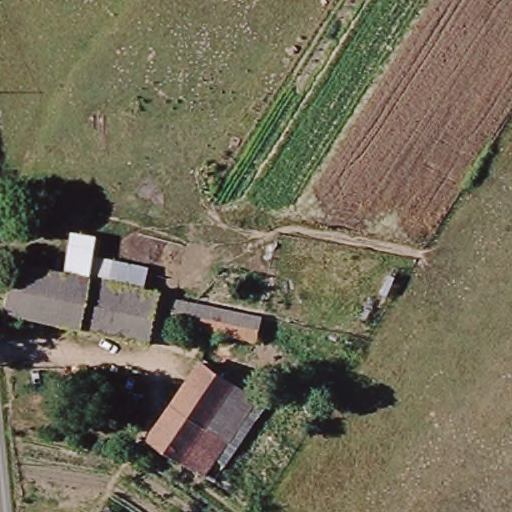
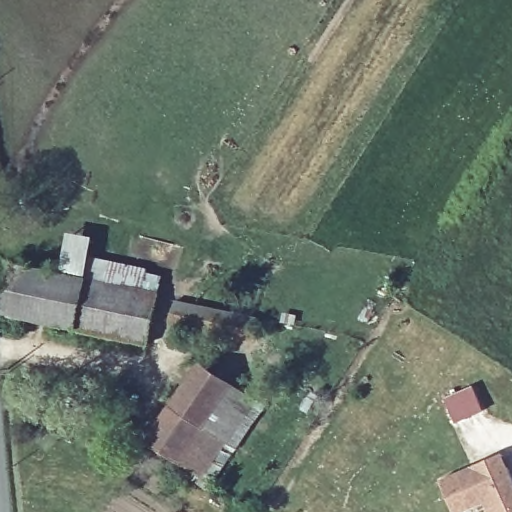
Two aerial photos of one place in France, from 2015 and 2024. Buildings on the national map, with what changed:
unchanged [(131,292),(152,298),(141,345),(0,315),(0,291),(7,259),(121,286),(131,292)]
unchanged [(170,321),(175,300),(252,317),(249,338),(170,321)]
unchanged [(197,362),(251,398),(201,473),(147,438),(197,362)]
new [(512,512),(490,512),(485,502),(464,512),(456,512),(441,480),(502,453),(512,476),(512,512)]

